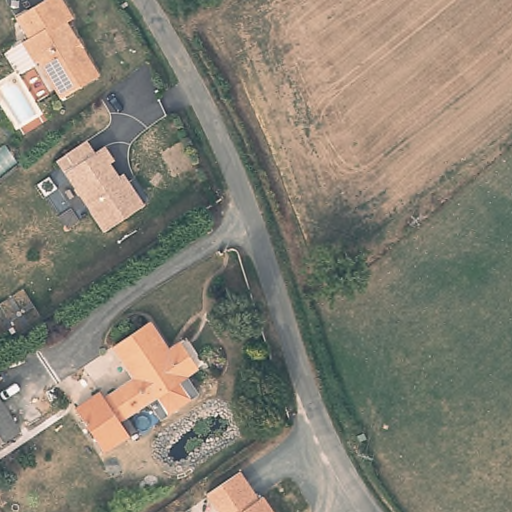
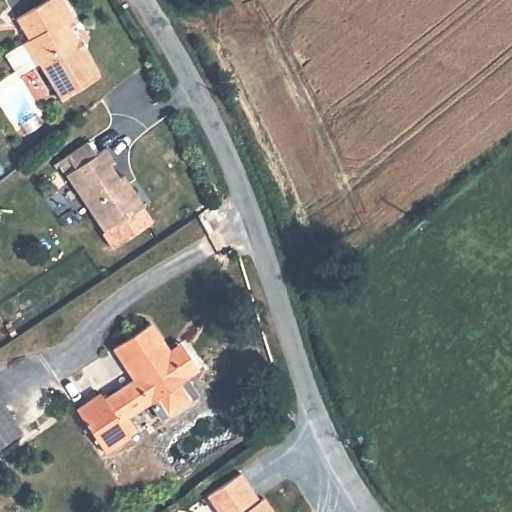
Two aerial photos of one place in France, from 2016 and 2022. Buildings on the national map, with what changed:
unchanged [(51,89),(35,65),(32,66),(19,46),(25,42),(22,36),(12,21),(46,0),(56,0),(61,7),(70,21),(63,26),(87,63),(97,78),(58,102),(51,89)]
unchanged [(106,168),(121,190),(125,187),(140,210),(100,236),(62,177),(71,171),(63,159),(84,145),(92,157),(102,151),(110,166),(106,168)]
unchanged [(119,414),(129,431),(101,448),(71,398),(99,380),(104,389),(134,370),(117,340),(154,318),(171,343),(181,338),(187,345),(198,364),(119,414)]
unchanged [(17,433),(0,445),(0,398),(21,428),(17,433)]
unchanged [(243,483),(262,512),(265,510),(266,512),(213,512),(209,505),(243,483)]

